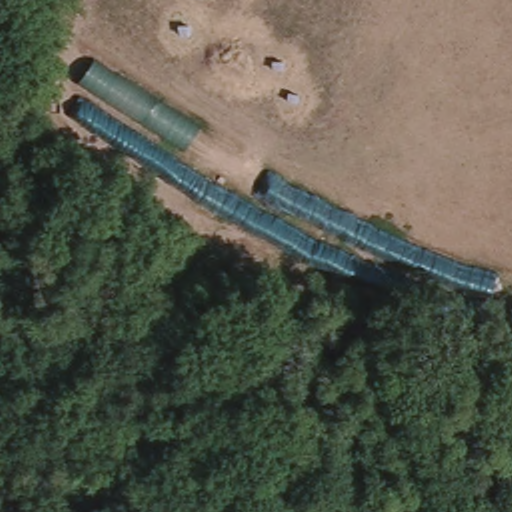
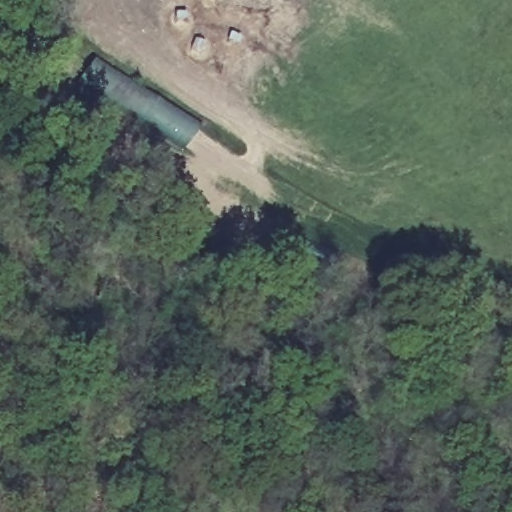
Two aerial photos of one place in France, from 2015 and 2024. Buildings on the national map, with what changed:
[]

